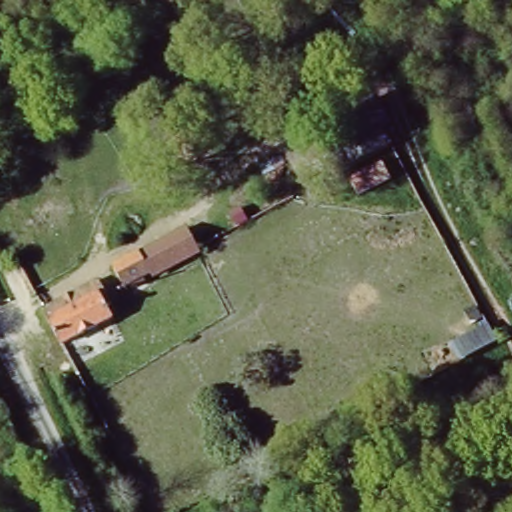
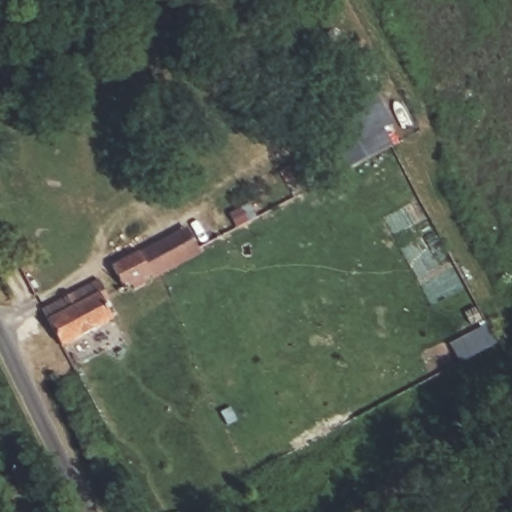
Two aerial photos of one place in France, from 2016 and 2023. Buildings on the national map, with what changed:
unchanged [(320,129),(382,95),(396,121),(385,127),(393,145),(342,170),(320,129)]
unchanged [(112,266),(190,226),(202,250),(125,290),(112,266)]
unchanged [(58,352),(37,314),(95,290),(111,324),(58,352)]

